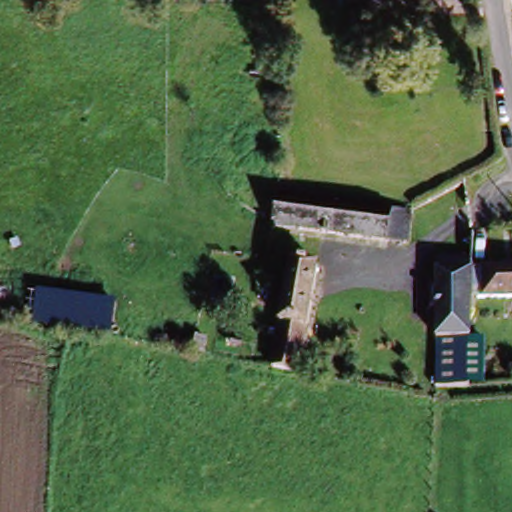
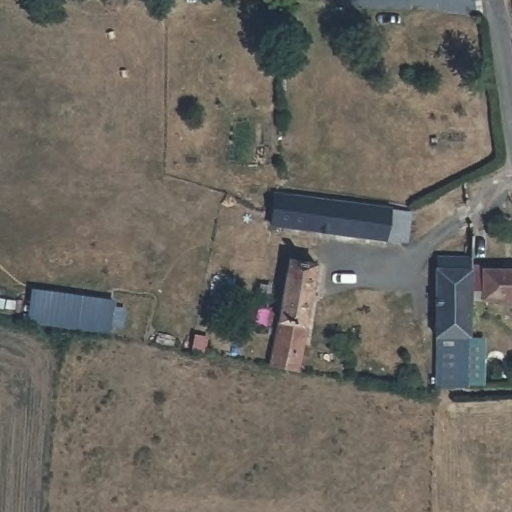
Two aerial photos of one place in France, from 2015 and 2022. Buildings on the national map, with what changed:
unchanged [(345,15),(345,0),(415,0),(416,14),(345,15)]
unchanged [(385,242),(297,232),(270,229),(272,200),(277,201),(389,215),(403,216),(399,245),(385,242)]
unchanged [(479,298),(472,298),(471,342),(440,341),(437,341),(440,262),(474,263),(474,272),(485,272),(485,277),(507,277),(507,271),(512,272),(512,307),(484,307),(479,307),(479,298)]
unchanged [(315,275),(295,380),(267,375),(287,270),(315,275)]
unchanged [(77,336),(34,328),(39,300),(82,307),(77,336)]
unchanged [(200,340),(197,353),(187,351),(190,337),(200,340)]
unchanged [(471,342),(470,387),(438,387),(440,341),(471,342)]

